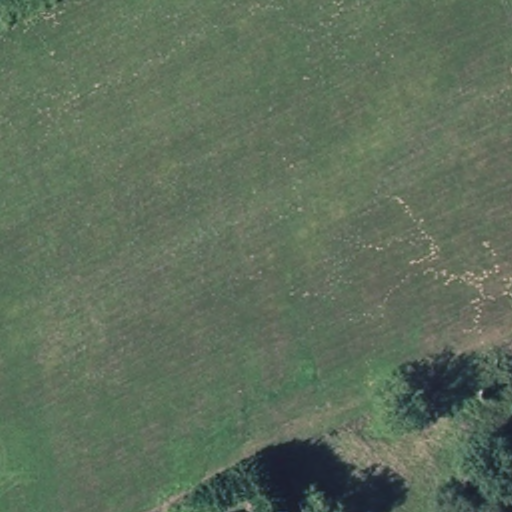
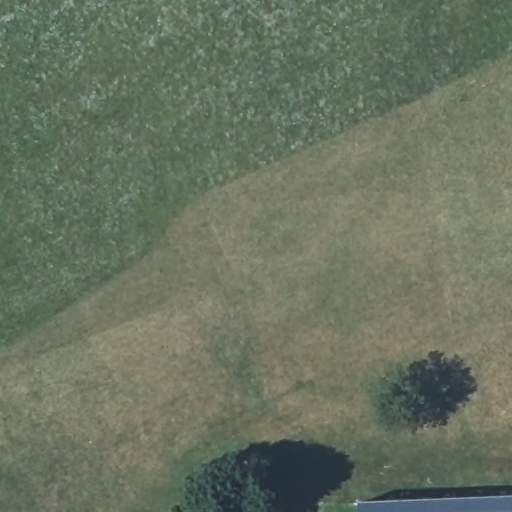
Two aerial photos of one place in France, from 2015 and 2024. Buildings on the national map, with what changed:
new [(512,512),(359,512),(358,503),(512,497),(512,512)]

